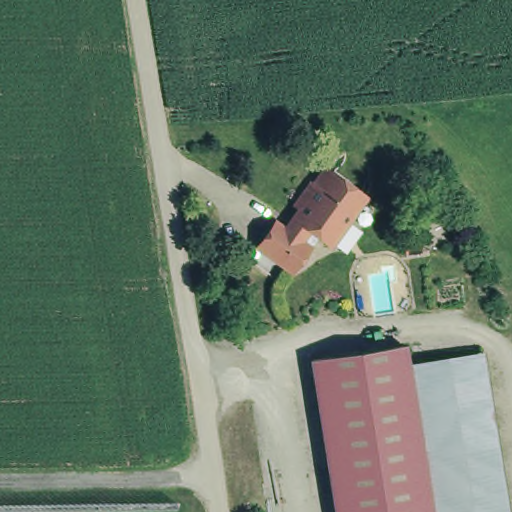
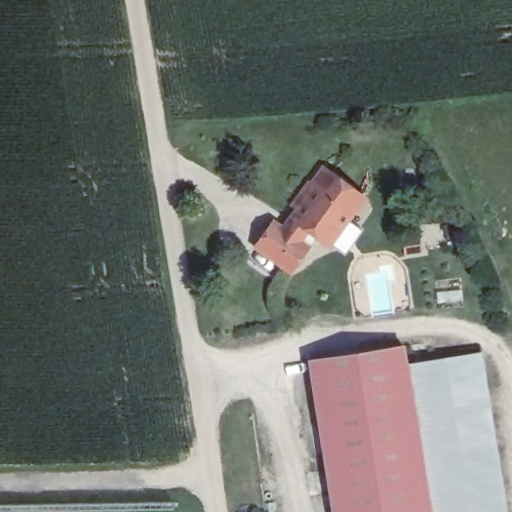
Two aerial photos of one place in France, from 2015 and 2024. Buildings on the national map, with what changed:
unchanged [(252,242),(269,217),(277,224),(287,210),(293,203),(287,198),(296,187),(299,190),(319,162),(357,192),(323,239),(304,224),(294,236),(302,243),(285,267),(252,242)]
unchanged [(431,512),(334,512),(311,359),(404,344),(408,361),(431,512)]
unchanged [(486,349),(512,510),(512,512),(431,512),(408,361),(486,349)]

